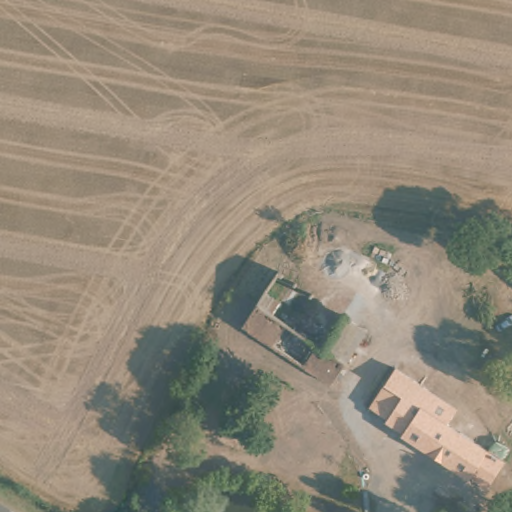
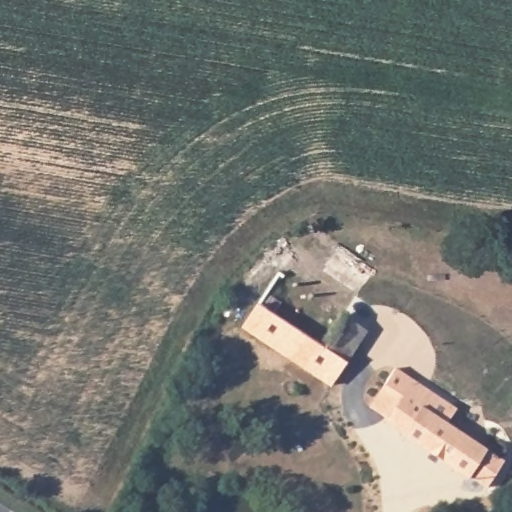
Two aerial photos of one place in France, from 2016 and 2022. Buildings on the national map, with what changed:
unchanged [(325,345),(345,316),(366,330),(331,385),(244,327),(260,302),(325,345)]
unchanged [(452,405),(449,410),(480,431),(471,442),(485,451),(490,445),(494,443),(500,444),(504,448),(505,451),(505,455),(501,461),(503,463),(488,486),(470,473),(467,477),(402,434),(402,430),(384,418),(383,415),(370,405),(396,367),(452,405)]

